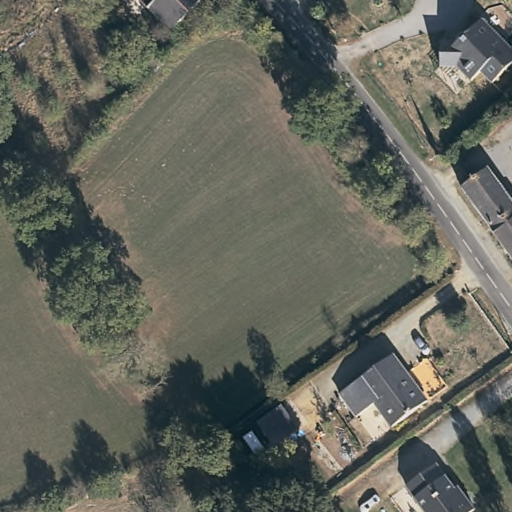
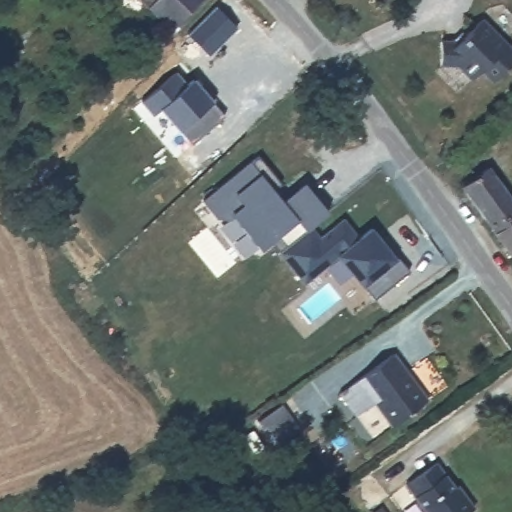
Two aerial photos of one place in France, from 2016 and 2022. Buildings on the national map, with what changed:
unchanged [(152,1),(147,5),(142,0),(200,0),(175,25),(152,1)]
new [(187,34),(215,5),(236,25),(208,54),(187,34)]
unchanged [(485,78),(475,66),(463,75),(450,61),(434,60),(433,35),(450,36),(475,16),(511,52),(485,78)]
new [(175,72),(185,84),(191,80),(224,114),(191,142),(159,110),(152,115),(141,101),(175,72)]
new [(215,219),(201,201),(249,161),(250,163),(257,156),(280,184),(272,190),(281,201),(302,183),(327,212),(310,227),(320,236),(342,216),(358,235),(370,226),(395,258),(407,270),(374,299),(361,286),(336,256),(303,285),(278,255),(270,241),(260,250),(230,215),(229,220),(215,219)]
unchanged [(512,208),(485,225),(456,186),(483,168),(512,208)]
unchanged [(512,208),(512,263),(485,225),(512,208)]
unchanged [(395,352),(415,380),(427,398),(420,403),(392,425),(377,405),(357,420),(337,393),(358,379),(395,352)]
unchanged [(301,428),(270,450),(253,425),(281,402),(301,428)]
unchanged [(465,492),(475,507),(469,512),(428,512),(406,483),(436,460),(461,494),(465,492)]

